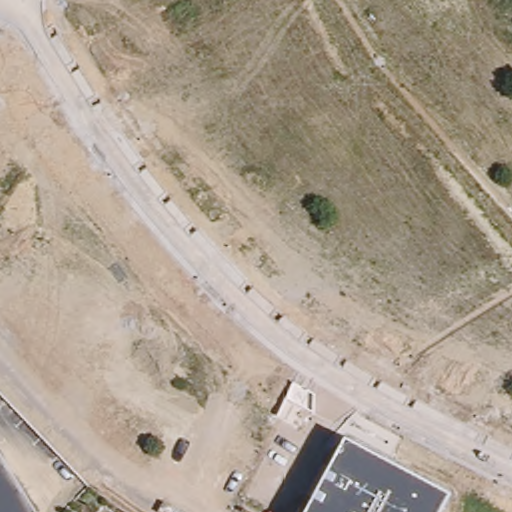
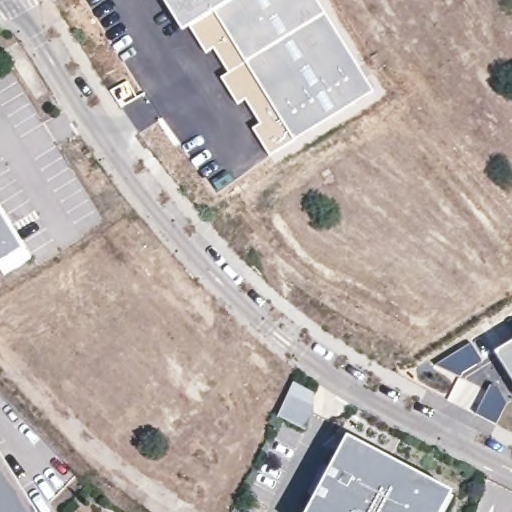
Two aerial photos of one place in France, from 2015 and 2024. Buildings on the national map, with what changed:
new [(374,92),(268,157),(250,128),(257,123),(244,102),(236,106),(218,77),(226,73),(212,51),(205,55),(187,29),(181,33),(160,0),(317,0),(374,92)]
new [(3,273),(0,266),(0,205),(31,256),(3,273)]
new [(512,340),(512,381),(494,351),(512,340)]
unchanged [(453,493),(443,512),(308,512),(348,437),(453,493)]
unchanged [(0,512),(0,451),(36,512),(0,512)]

